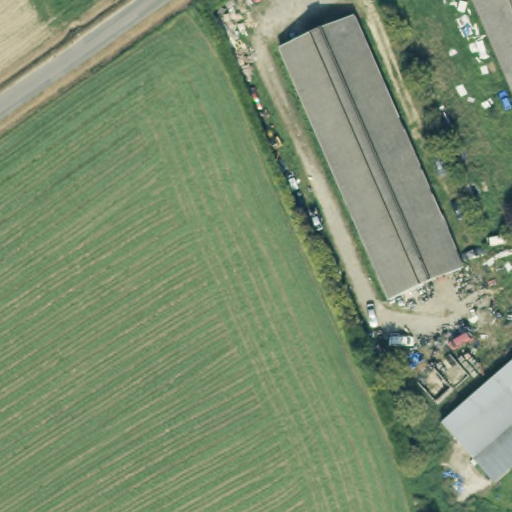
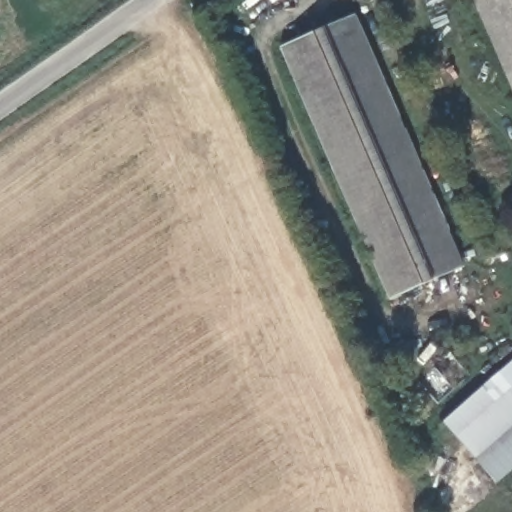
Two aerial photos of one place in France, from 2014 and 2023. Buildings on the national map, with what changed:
unchanged [(512,0),(512,87),(474,0),(512,0)]
unchanged [(462,261),(388,293),(276,42),(350,10),(462,261)]
unchanged [(512,360),(512,422),(475,457),(444,422),(512,360)]
unchanged [(475,457),(512,422),(512,467),(497,481),(475,457)]

